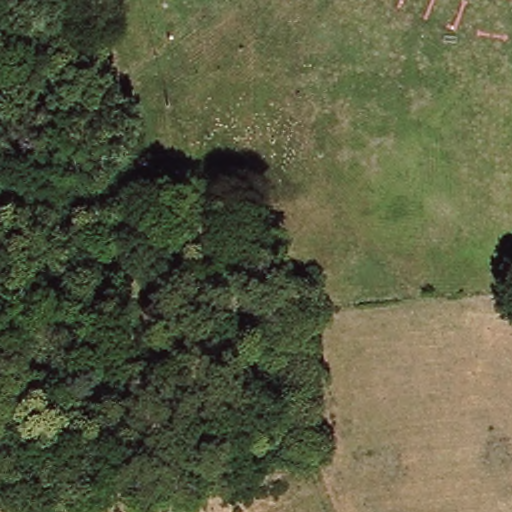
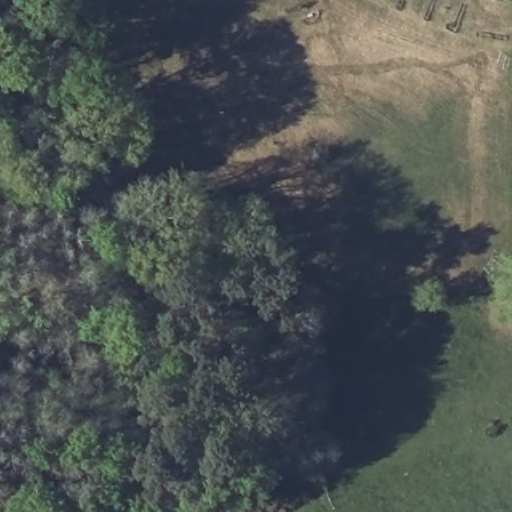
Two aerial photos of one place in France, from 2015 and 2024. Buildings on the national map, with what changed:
unchanged [(141,298),(142,311),(129,311),(129,298),(141,298)]

